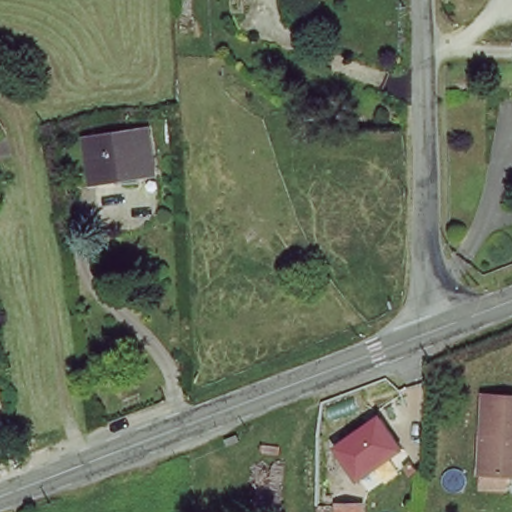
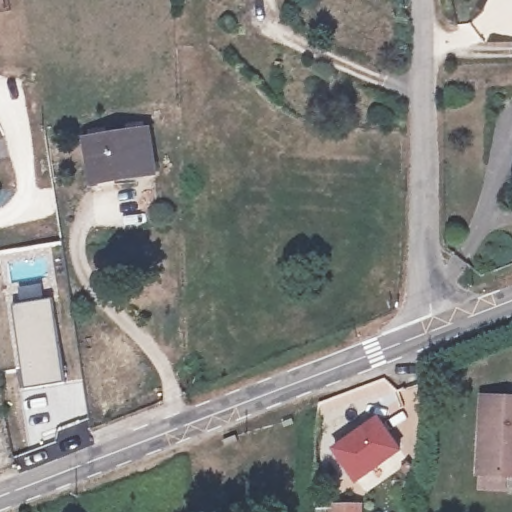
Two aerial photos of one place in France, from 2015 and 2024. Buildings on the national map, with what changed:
unchanged [(231,0),(256,0),(256,2),(231,3),(231,0)]
unchanged [(153,176),(95,183),(90,142),(147,135),(153,176)]
new [(20,302),(18,285),(41,281),(44,299),(53,297),(68,383),(25,389),(11,304),(20,302)]
unchanged [(512,400),(512,478),(482,476),(487,398),(512,400)]
unchanged [(396,449),(354,479),(332,449),(374,417),(396,449)]
unchanged [(336,506),(359,507),(359,512),(336,512),(336,506)]

